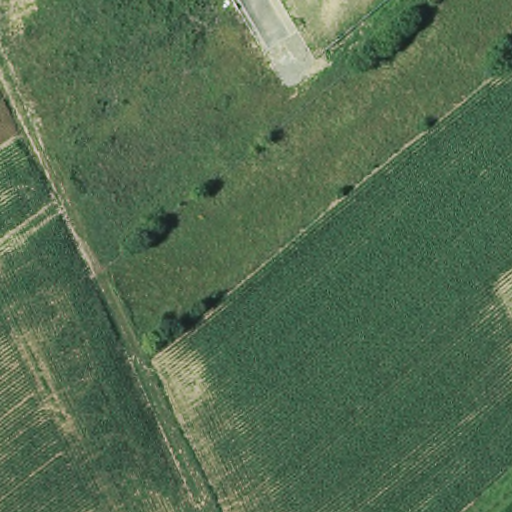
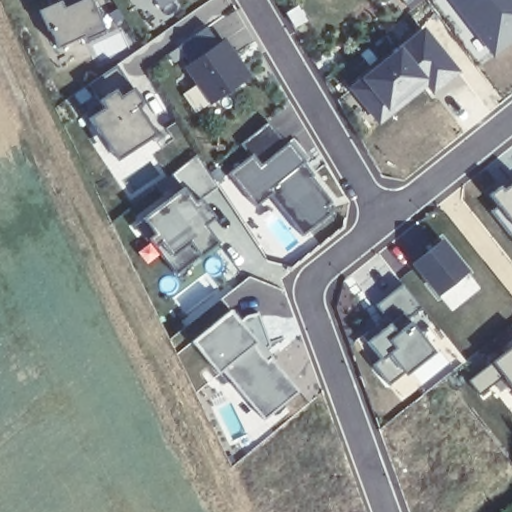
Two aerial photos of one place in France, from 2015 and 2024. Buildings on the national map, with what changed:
new [(105,32),(58,52),(40,7),(48,6),(46,0),(91,0),(105,32)]
new [(160,10),(154,0),(175,0),(160,10)]
new [(493,57),(473,35),(445,0),(512,0),(512,43),(493,57)]
new [(423,25),(461,74),(432,97),(425,87),(378,126),(345,87),(423,25)]
new [(222,41),(232,55),(228,58),(236,69),(240,66),(246,76),(210,102),(185,67),(222,41)]
new [(159,133),(118,161),(88,120),(133,89),(159,133)]
new [(305,162),(300,169),(337,206),(305,235),(270,190),(253,206),(231,174),(252,160),(242,145),(267,126),(305,162)]
new [(173,175),(197,157),(217,187),(200,200),(212,218),(204,225),(218,244),(175,274),(140,224),(186,187),(173,175)]
new [(500,186),(503,190),(512,183),(512,238),(489,210),(495,206),(487,196),(500,186)]
new [(443,236),(471,271),(437,298),(410,264),(443,236)]
new [(205,275),(221,297),(190,322),(175,300),(205,275)]
new [(401,283),(421,308),(395,323),(392,320),(374,305),(401,283)]
new [(230,308),(240,319),(247,315),(257,312),(262,329),(256,331),(263,342),(297,391),(263,421),(219,372),(217,374),(190,341),(230,308)]
new [(389,322),(396,331),(410,318),(435,351),(388,387),(370,366),(378,359),(365,341),(389,322)]
new [(512,345),(512,390),(508,386),(498,394),(491,386),(479,395),(467,380),(512,345)]

